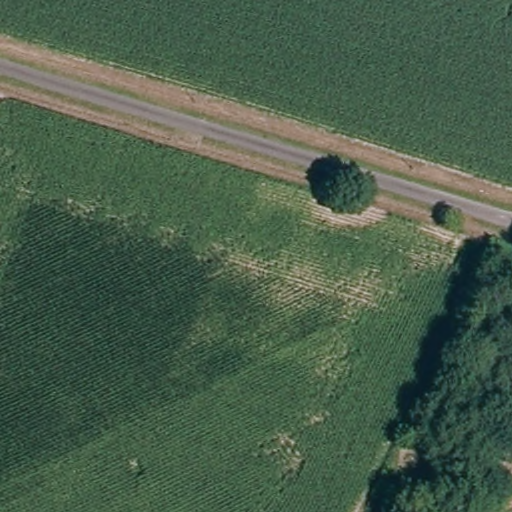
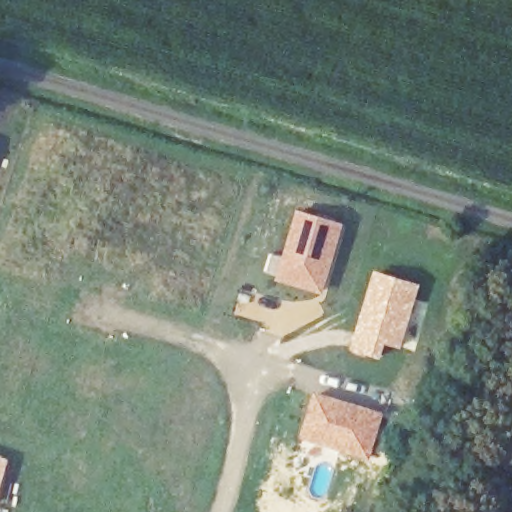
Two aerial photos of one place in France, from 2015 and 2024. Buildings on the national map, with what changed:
new [(271,253),(282,256),(297,210),(345,224),(323,295),(273,279),(274,275),(264,272),(271,253)]
new [(374,270),(422,284),(402,349),(387,344),(382,359),(348,350),(374,270)]
new [(312,391),(386,412),(369,462),(298,438),(312,391)]
new [(0,490),(0,456),(9,459),(0,490)]

